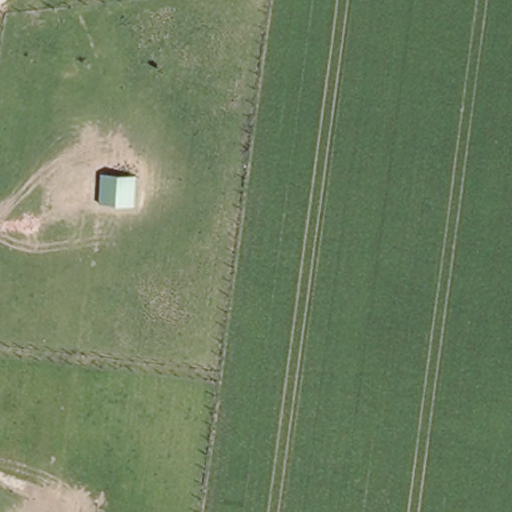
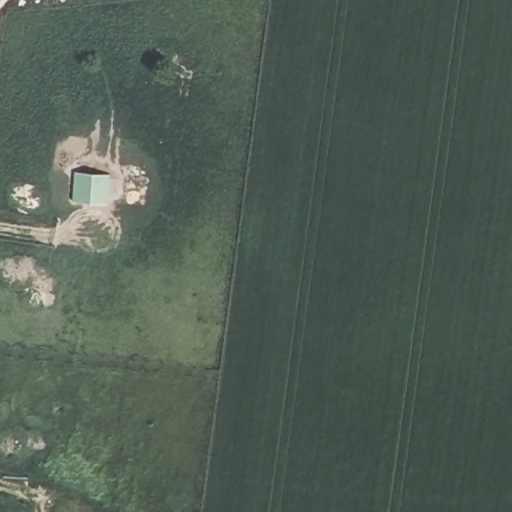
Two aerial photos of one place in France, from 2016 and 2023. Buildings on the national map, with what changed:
unchanged [(100,176),(98,205),(63,203),(64,174),(100,176)]

